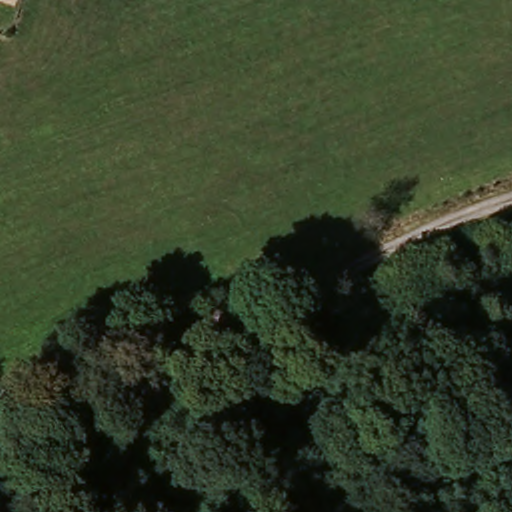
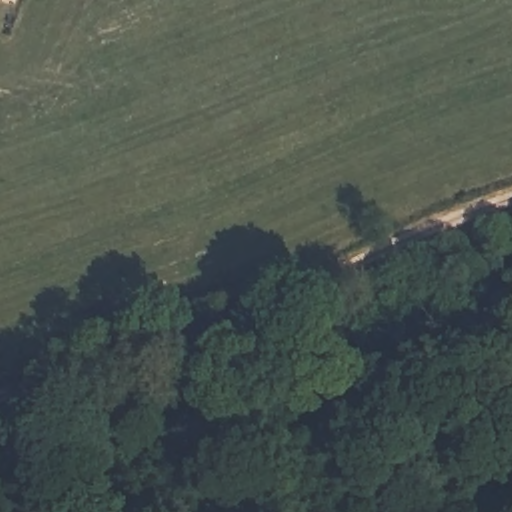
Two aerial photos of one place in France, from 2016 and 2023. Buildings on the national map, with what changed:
unchanged [(10,11),(0,6),(0,0),(16,0),(10,11)]

